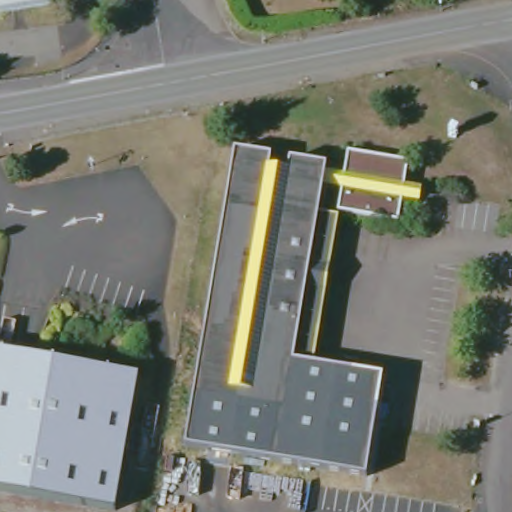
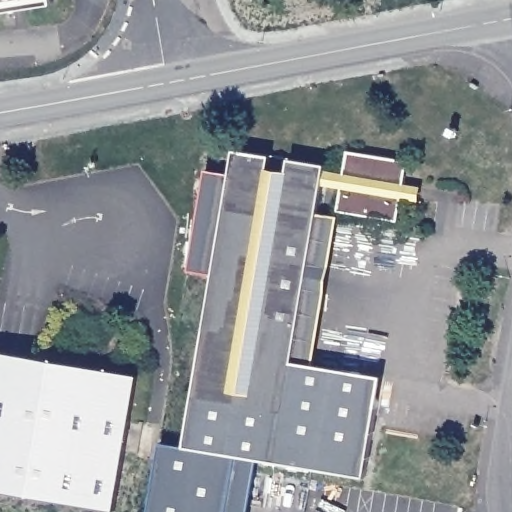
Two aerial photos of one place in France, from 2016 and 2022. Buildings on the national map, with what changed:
unchanged [(50,0),(51,6),(0,14),(0,0),(50,0)]
unchanged [(325,166),(284,410),(194,395),(234,150),(325,166)]
unchanged [(356,215),(339,212),(342,197),(344,187),(325,184),(328,171),(346,174),(348,168),(350,151),(367,153),(394,157),(410,161),(407,176),(406,184),(415,186),(413,199),(409,198),(408,204),(403,203),(399,222),(382,219),(356,215)]
unchanged [(284,410),(317,213),(341,219),(316,366),(385,378),(368,480),(184,447),(194,395),(284,410)]
unchanged [(142,376),(121,512),(0,493),(0,353),(142,376)]
new [(161,443),(184,447),(258,460),(249,512),(150,512),(161,443)]

